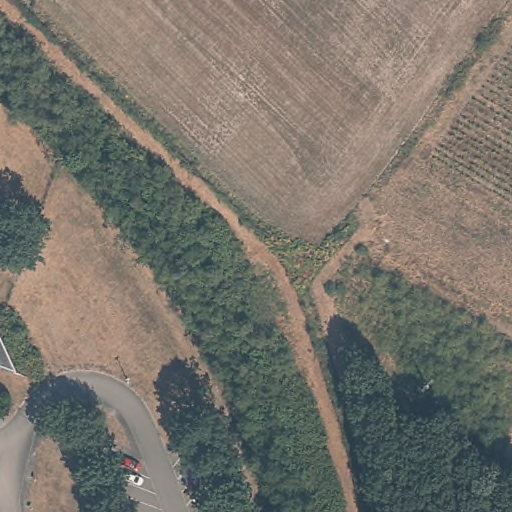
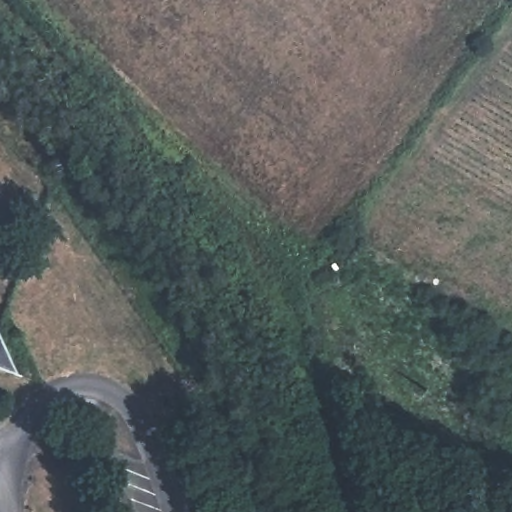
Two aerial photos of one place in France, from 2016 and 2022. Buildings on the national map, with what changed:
unchanged [(0,367),(0,336),(16,374),(0,367)]

